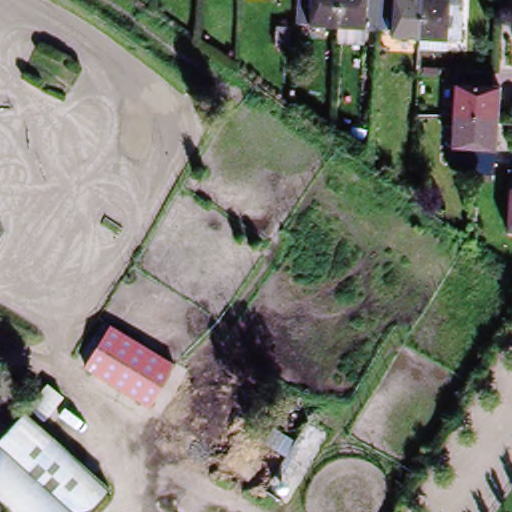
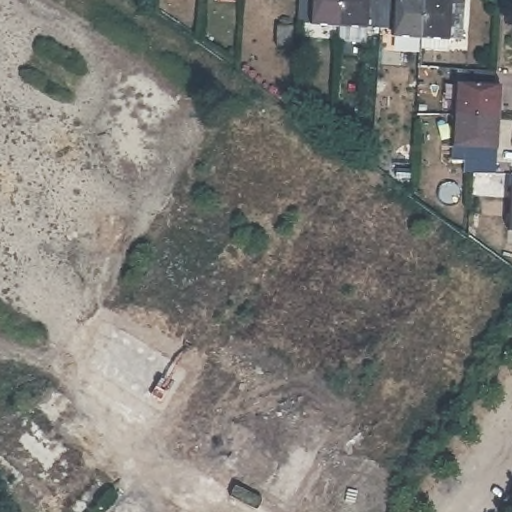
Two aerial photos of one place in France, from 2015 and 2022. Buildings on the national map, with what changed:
unchanged [(347,38),(348,23),(307,21),(308,0),(391,0),(390,25),(375,24),(374,39),(347,38)]
unchanged [(430,44),(431,34),(402,33),(402,26),(390,25),(391,0),(461,0),(475,2),(473,37),(456,36),(456,46),(430,44)]
unchanged [(301,22),(300,41),(285,40),(286,20),(301,22)]
unchanged [(459,123),(461,77),(498,79),(500,79),(499,90),(498,93),(505,93),(503,125),(459,123)]
unchanged [(503,125),(501,155),(499,180),(467,180),(468,167),(458,166),(459,123),(503,125)]
unchanged [(510,180),(512,180),(512,222),(508,222),(510,180)]
demolished [(182,382),(162,414),(92,371),(111,340),(182,382)]
demolished [(63,396),(43,419),(31,409),(50,385),(63,396)]
demolished [(111,491),(91,512),(15,512),(0,499),(0,439),(25,411),(112,490),(111,491)]
demolished [(289,507),(266,491),(311,414),(336,430),(289,507)]

